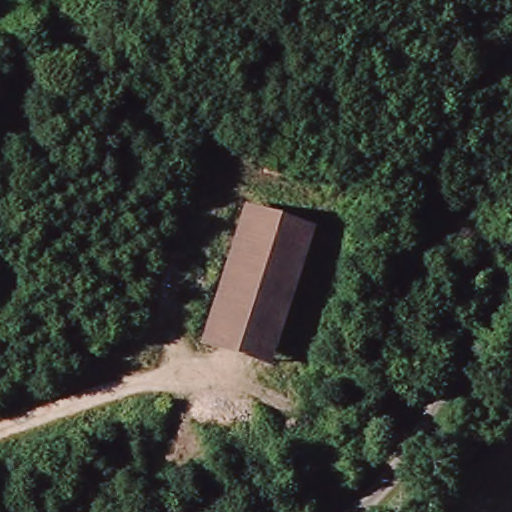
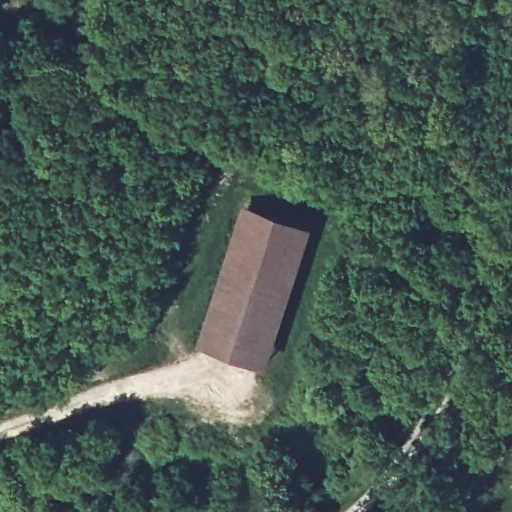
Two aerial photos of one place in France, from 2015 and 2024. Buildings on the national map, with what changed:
unchanged [(197,337),(240,203),(304,224),(261,358),(197,337)]

